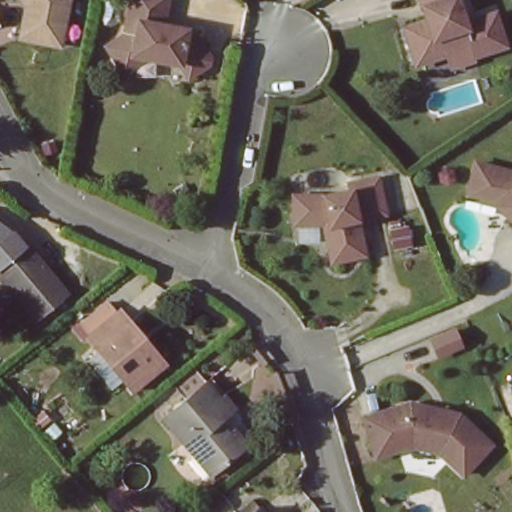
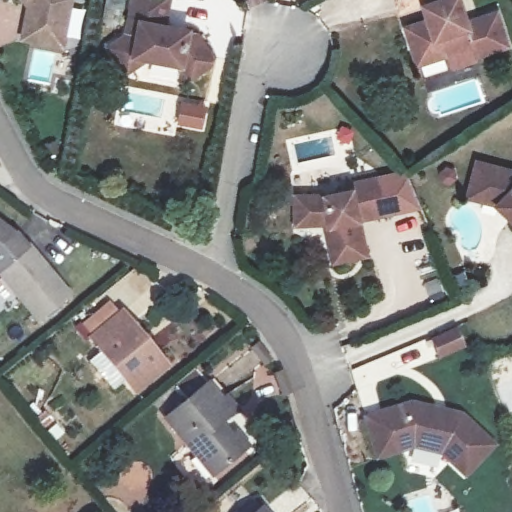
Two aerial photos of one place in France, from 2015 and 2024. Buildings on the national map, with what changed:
unchanged [(31,0),(72,0),(65,40),(35,34),(25,32),(31,0)]
unchanged [(176,4),(172,27),(202,37),(218,62),(214,69),(200,78),(193,80),(183,69),(140,63),(127,72),(112,52),(133,36),(140,0),(159,0),(176,4)]
unchanged [(470,19),(501,10),(511,46),(475,56),(473,50),(420,65),(408,23),(433,16),(430,6),(425,8),(422,0),(464,0),(470,19)]
unchanged [(498,164),(512,168),(512,213),(509,210),(487,200),(477,199),(483,160),(498,164)]
unchanged [(392,210),(368,223),(378,253),(346,264),(334,231),(304,235),(297,207),(328,199),(350,191),(349,186),(377,175),(392,210)]
unchanged [(10,233),(22,246),(27,242),(68,289),(37,315),(0,272),(0,241),(10,233)]
unchanged [(119,312),(163,366),(132,392),(87,339),(119,312)]
unchanged [(245,448),(238,453),(206,478),(160,419),(202,386),(215,402),(223,395),(236,412),(212,430),(220,440),(225,436),(230,430),(245,448)]
unchanged [(370,418),(420,403),(462,414),(495,443),(469,471),(443,449),(415,443),(382,453),(370,418)]
unchanged [(264,512),(248,512),(258,504),(264,512)]

